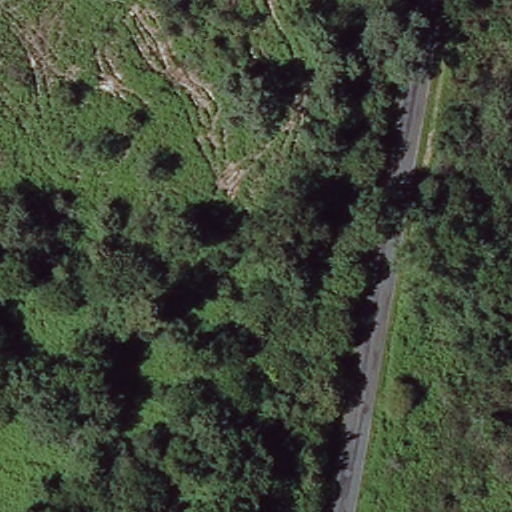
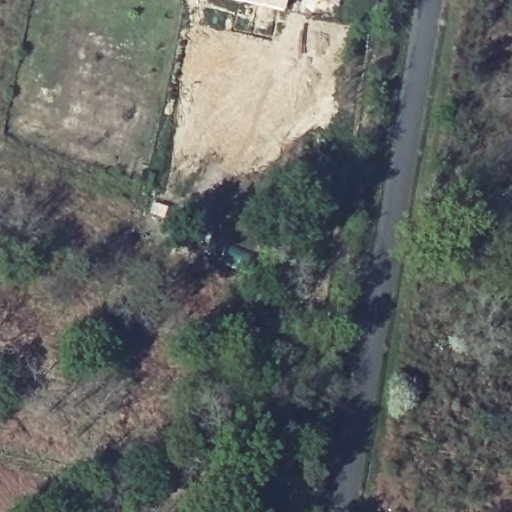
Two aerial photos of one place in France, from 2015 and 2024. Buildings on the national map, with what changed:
new [(283,11),(230,0),(285,0),(283,11)]

